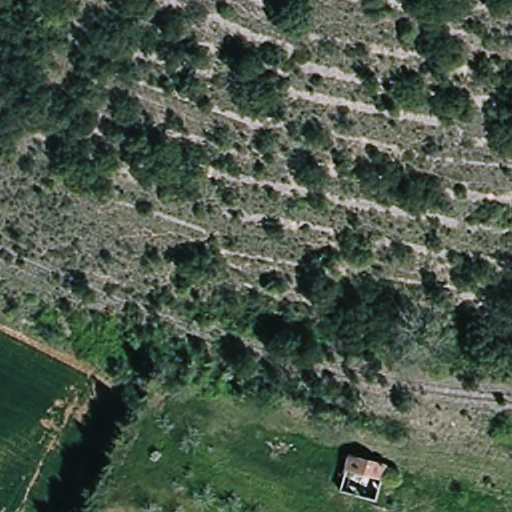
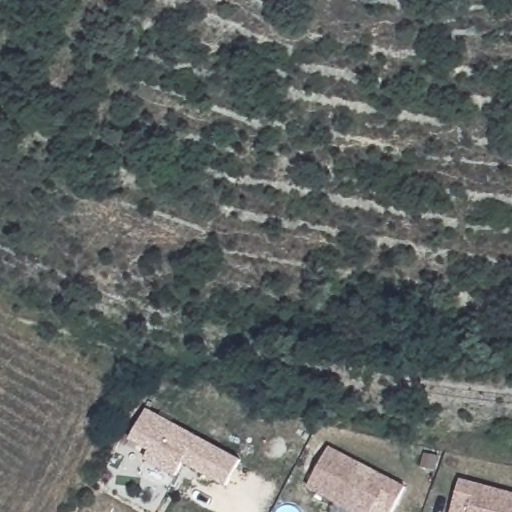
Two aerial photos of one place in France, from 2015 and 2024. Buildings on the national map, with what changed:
new [(150,451),(130,439),(147,409),(242,461),(228,488),(183,463),(176,477),(146,461),(150,451)]
new [(309,488),(329,448),(407,488),(393,512),(354,512),(309,488)]
demolished [(351,457),(388,469),(377,502),(340,489),(351,457)]
new [(512,493),(512,512),(451,512),(460,479),(512,493)]

